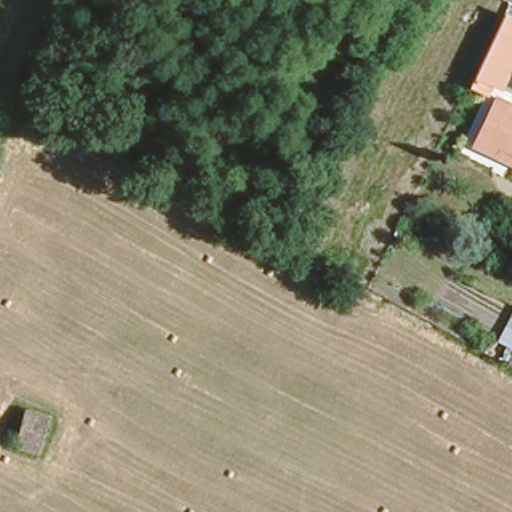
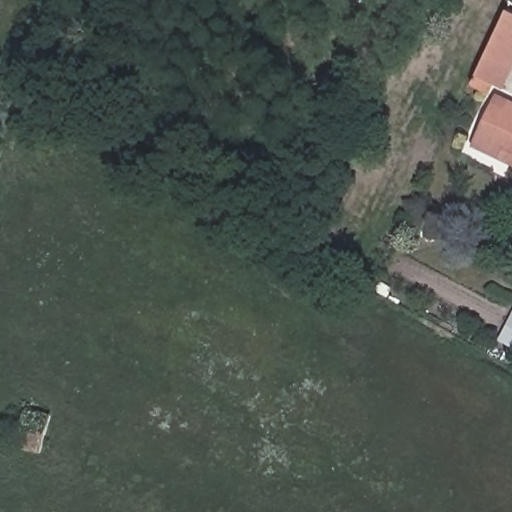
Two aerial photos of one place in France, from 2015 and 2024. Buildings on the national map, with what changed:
unchanged [(494,77),(475,67),(508,6),(512,8),(512,43),(494,77)]
unchanged [(506,158),(480,144),(506,97),(512,101),(512,162),(506,158)]
unchanged [(39,446),(39,445),(6,432),(19,400),(50,414),(39,446)]

